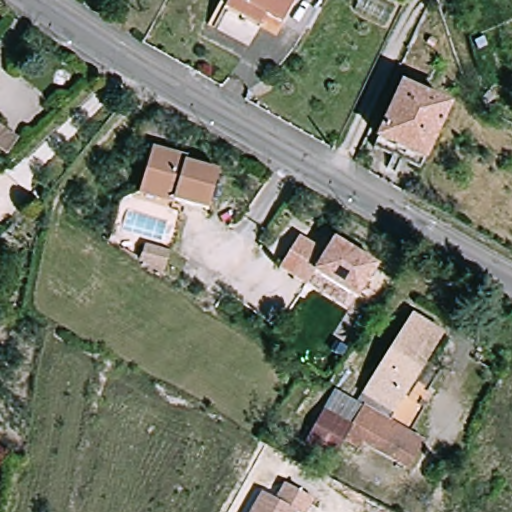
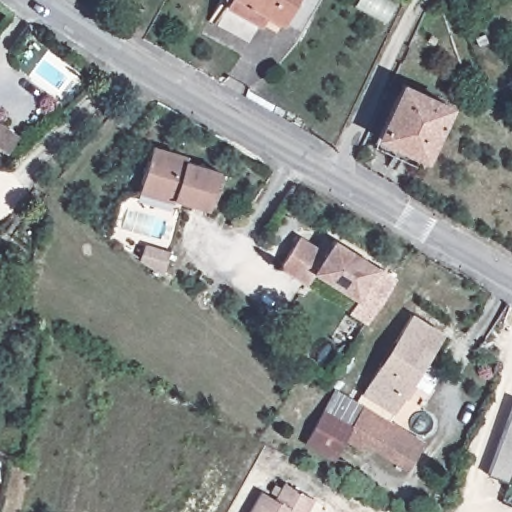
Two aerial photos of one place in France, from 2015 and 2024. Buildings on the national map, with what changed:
unchanged [(287,21),(271,13),(265,26),(231,9),(236,0),(299,0),(287,21)]
unchanged [(451,106),(427,159),(384,138),(409,83),(451,106)]
unchanged [(4,145),(0,142),(0,111),(4,113),(19,125),(4,145)]
unchanged [(141,189),(145,177),(158,139),(191,151),(189,158),(223,170),(211,205),(177,193),(175,199),(141,189)]
unchanged [(279,271),(300,238),(325,255),(333,241),(377,268),(357,299),(317,273),(306,288),(279,271)]
unchanged [(147,245),(168,250),(164,272),(144,260),(147,245)]
unchanged [(447,331),(394,418),(428,439),(427,440),(412,465),(368,439),(364,445),(349,436),(337,455),(309,438),(340,387),(362,400),(415,311),(447,331)]
new [(508,482),(489,474),(512,411),(512,471),(508,482)]
unchanged [(279,500),(290,481),(321,500),(314,512),(257,512),(268,494),(279,500)]

